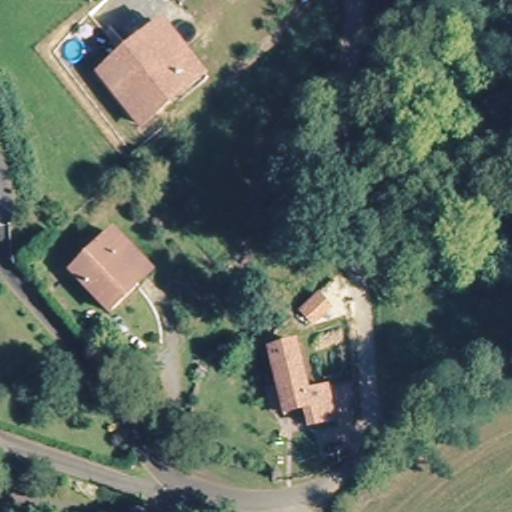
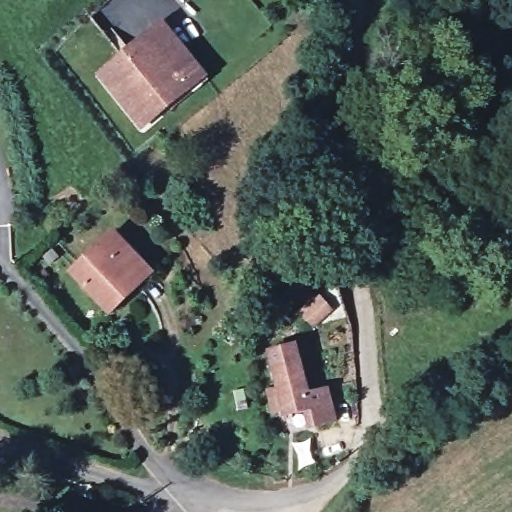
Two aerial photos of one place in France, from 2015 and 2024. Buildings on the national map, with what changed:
unchanged [(170,27),(211,80),(194,91),(153,38),(170,27)]
unchanged [(141,126),(101,73),(153,38),(194,91),(141,126)]
unchanged [(71,267),(120,232),(134,251),(155,277),(143,287),(109,311),(71,267)]
unchanged [(351,322),(319,330),(307,315),(344,285),(351,322)]
unchanged [(272,347),(301,342),(309,393),(333,389),(338,423),(316,427),(312,401),(286,405),(287,406),(277,407),(273,386),(278,385),(272,347)]

